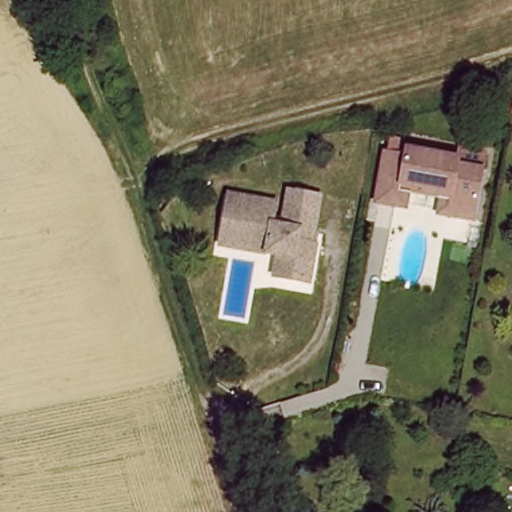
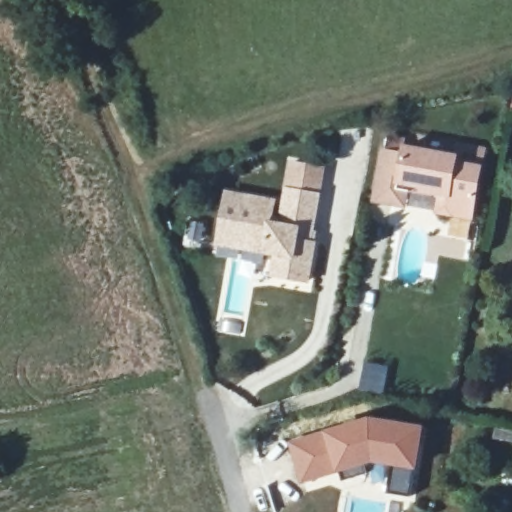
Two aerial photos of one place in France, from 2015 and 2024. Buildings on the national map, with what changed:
unchanged [(437,198),(405,193),(402,211),(393,209),(372,207),(380,154),(400,156),(400,150),(454,158),(452,164),(478,168),(470,219),(453,216),(435,214),(437,198)]
unchanged [(280,200),(282,188),(324,194),(311,289),(268,283),(271,266),(261,264),(262,251),(215,247),(224,190),(280,200)]
new [(290,443),(326,431),(372,417),(426,428),(419,471),(416,471),(412,496),(390,492),(395,466),(375,463),(366,464),(369,473),(345,479),(342,473),(302,484),(290,443)]

